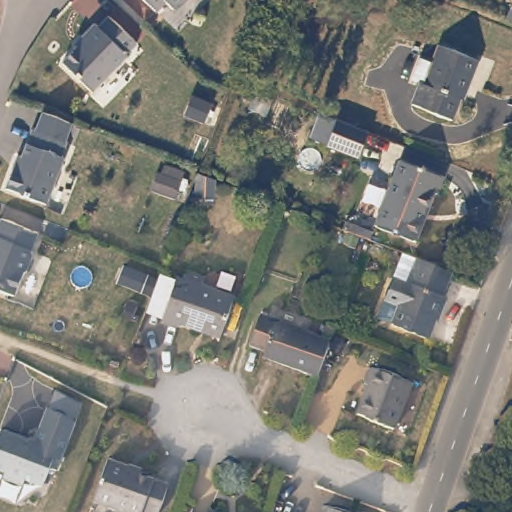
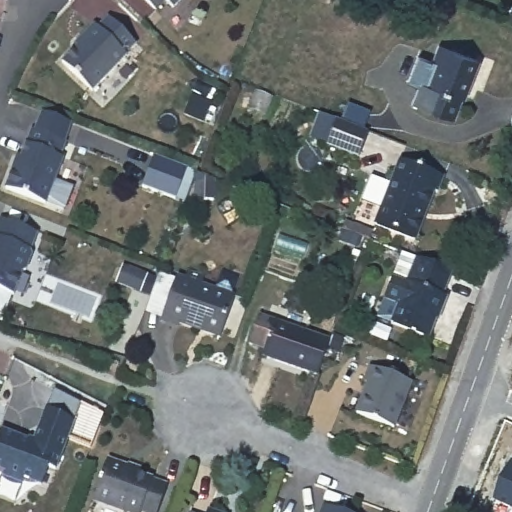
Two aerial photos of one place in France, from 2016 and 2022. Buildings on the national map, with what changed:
unchanged [(182,0),(174,8),(167,1),(157,11),(146,0),(182,0)]
unchanged [(63,63),(86,40),(83,37),(95,25),(99,28),(109,17),(137,44),(127,55),(128,56),(93,92),(63,63)]
unchanged [(479,61),(465,101),(461,99),(453,120),(413,104),(421,84),(412,81),(421,57),(434,63),(440,46),(479,61)]
unchanged [(372,129),(361,160),(307,140),(320,110),(372,129)]
unchanged [(7,189),(20,157),(23,157),(33,130),(66,142),(61,157),(64,159),(47,204),(7,189)]
unchanged [(444,175),(438,190),(434,189),(415,237),(374,221),(399,157),(444,175)]
unchanged [(174,197),(149,187),(157,167),(164,168),(167,161),(186,169),(174,197)]
unchanged [(373,226),(368,236),(340,225),(343,215),(373,226)]
unchanged [(0,290),(0,225),(2,220),(39,234),(32,251),(34,255),(27,272),(24,273),(15,296),(0,290)]
unchanged [(450,267),(439,293),(446,296),(438,315),(434,313),(426,335),(388,321),(395,302),(382,297),(390,276),(403,281),(414,252),(450,267)]
unchanged [(234,296),(219,334),(180,320),(179,325),(162,318),(178,276),(234,296)]
unchanged [(327,338),(315,373),(264,355),(266,349),(248,343),(258,314),(327,338)]
unchanged [(408,379),(392,424),(355,411),(366,381),(363,380),(368,365),(408,379)]
unchanged [(47,402),(74,417),(62,448),(34,437),(47,402)]
unchanged [(56,465),(49,462),(42,480),(24,473),(22,479),(3,472),(5,466),(0,464),(0,428),(1,425),(34,437),(62,448),(56,465)]
unchanged [(140,472),(139,476),(165,486),(156,512),(139,512),(128,512),(94,498),(109,460),(140,472)]
unchanged [(334,512),(320,512),(322,507),(334,512)]
unchanged [(216,512),(208,512),(209,510),(216,512)]

